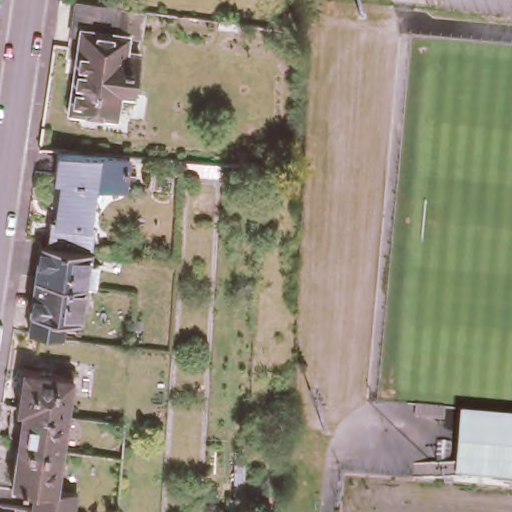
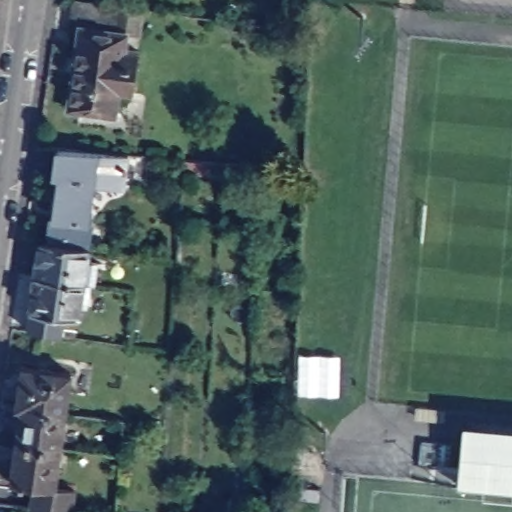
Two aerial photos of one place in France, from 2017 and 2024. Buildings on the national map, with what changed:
unchanged [(115,112),(69,106),(80,32),(70,31),(74,0),(102,0),(145,7),(141,35),(127,32),(125,47),(139,49),(132,90),(118,88),(115,112)]
unchanged [(219,18),(245,22),(243,28),(218,25),(219,18)]
unchanged [(91,183),(85,227),(52,222),(58,178),(53,177),(57,151),(123,157),(128,158),(125,188),(91,183)]
unchanged [(94,259),(91,283),(33,275),(38,240),(88,247),(87,257),(94,259)]
unchanged [(88,305),(81,304),(79,317),(28,310),(33,275),(91,283),(88,305)]
new [(297,393),(299,353),(341,356),(339,396),(297,393)]
unchanged [(71,372),(65,411),(20,403),(15,403),(21,363),(71,372)]
unchanged [(60,446),(15,439),(20,403),(65,411),(60,446)]
unchanged [(417,416),(418,407),(445,409),(444,418),(417,416)]
unchanged [(435,481),(438,442),(452,443),(450,467),(465,469),(468,424),(512,428),(512,487),(463,483),(435,481)]
unchanged [(15,439),(60,446),(53,487),(73,491),(70,512),(60,512),(29,507),(32,484),(9,480),(15,439)]
unchanged [(233,456),(242,457),(241,490),(232,489),(233,456)]
unchanged [(226,512),(228,491),(243,492),(242,512),(226,512)]

